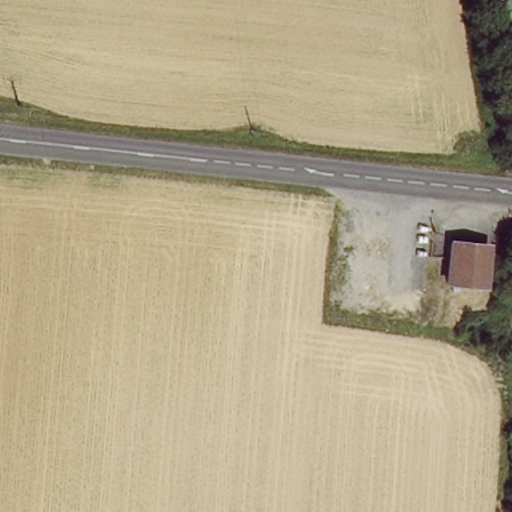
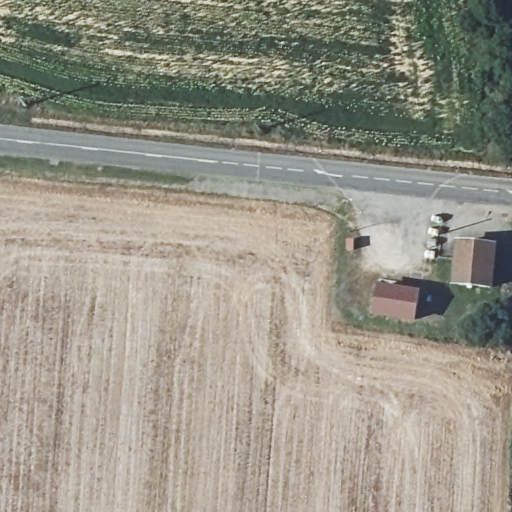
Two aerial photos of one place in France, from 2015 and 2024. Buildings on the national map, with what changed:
unchanged [(497,254),(491,301),(452,297),(458,251),(497,254)]
new [(374,318),(379,285),(422,292),(417,325),(374,318)]

